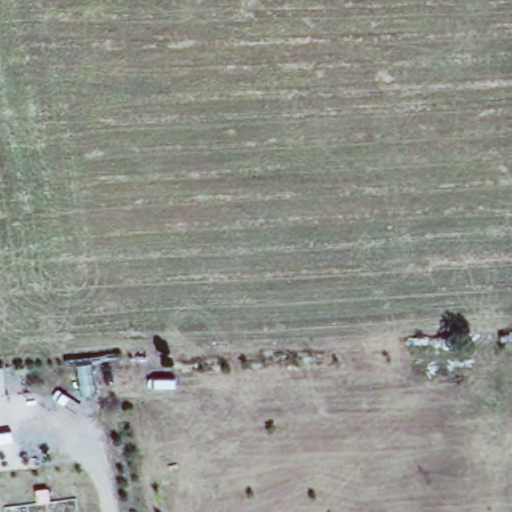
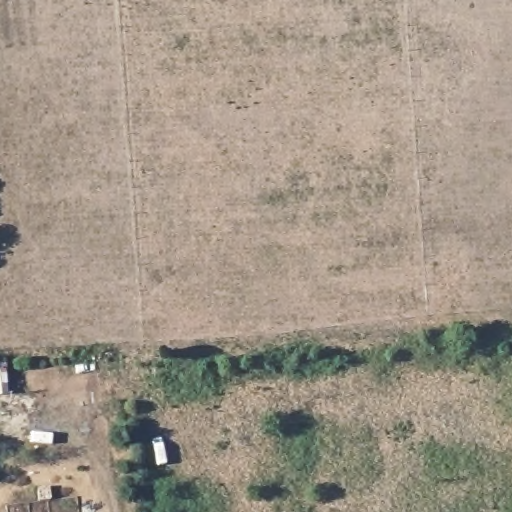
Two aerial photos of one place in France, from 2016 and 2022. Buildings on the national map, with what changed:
unchanged [(5,365),(7,395),(0,395),(0,365),(5,365)]

